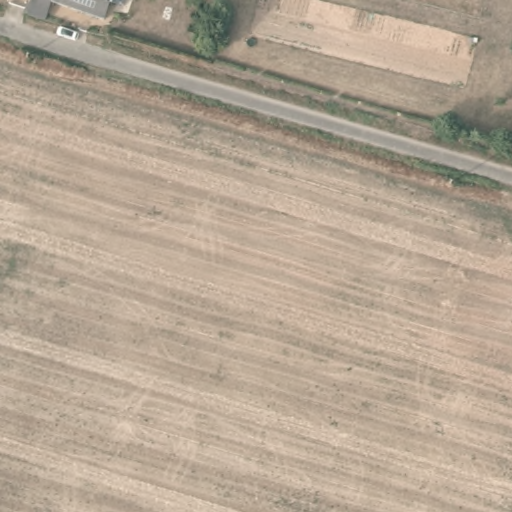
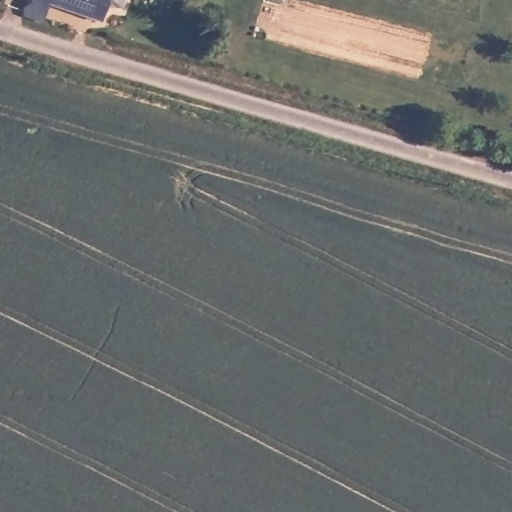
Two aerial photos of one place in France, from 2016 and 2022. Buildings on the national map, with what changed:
unchanged [(123,5),(109,1),(104,18),(52,1),(47,18),(20,9),(20,6),(20,2),(22,0),(124,0),(123,5)]

